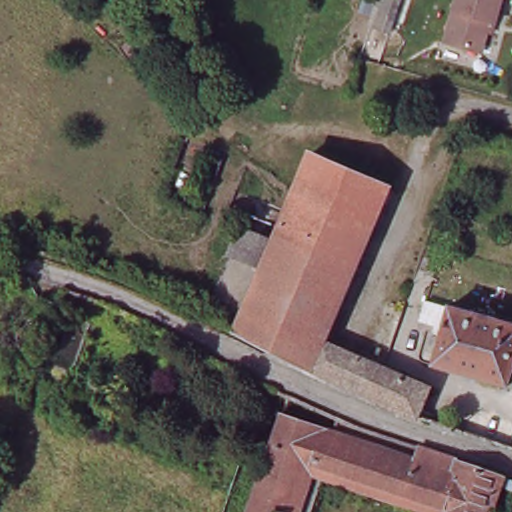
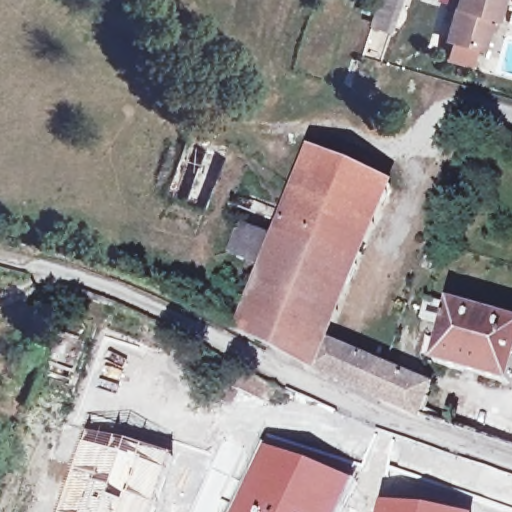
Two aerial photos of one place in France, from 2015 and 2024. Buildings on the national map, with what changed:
unchanged [(381,0),(406,0),(399,21),(376,14),(381,0)]
unchanged [(496,19),(488,48),(451,37),(462,0),(507,0),(502,21),(496,19)]
unchanged [(299,185),(315,147),(394,180),(379,220),(299,185)]
unchanged [(379,220),(333,333),(381,359),(378,365),(366,391),(241,327),(266,267),(279,236),(299,185),(379,220)]
unchanged [(241,221),(279,236),(266,267),(229,252),(241,221)]
unchanged [(512,385),(437,362),(448,327),(422,318),(431,295),(512,320),(512,385)]
unchanged [(415,415),(406,411),(371,393),(366,391),(378,365),(381,359),(387,362),(434,387),(421,417),(415,415)]
demolished [(288,408),(411,452),(414,442),(500,479),(512,483),(512,498),(496,493),(490,512),(418,512),(329,480),(318,512),(256,512),(288,408)]
new [(62,510),(88,433),(172,456),(154,512),(61,512),(62,510)]
new [(265,445),(359,481),(344,512),(234,512),(265,445)]
new [(381,501),(446,512),(379,512),(381,501)]

